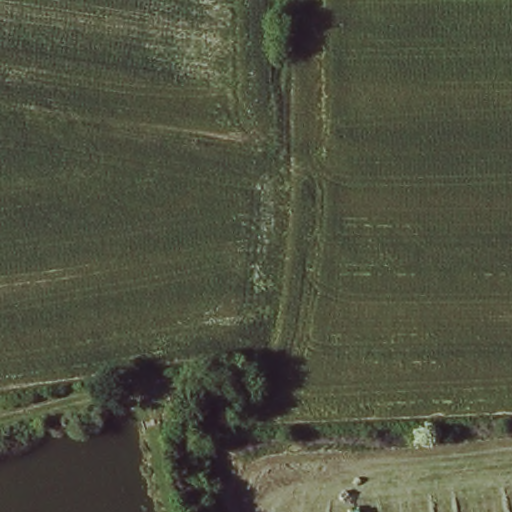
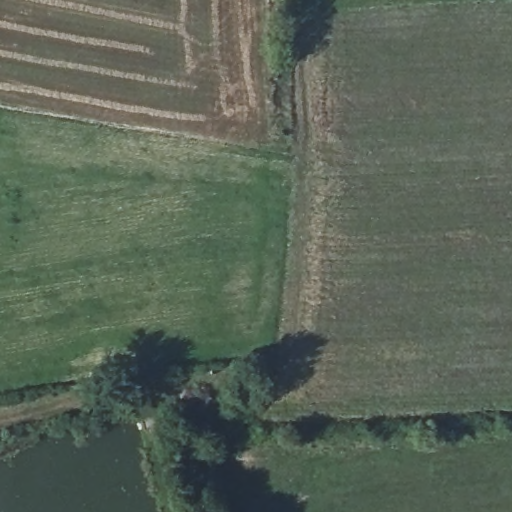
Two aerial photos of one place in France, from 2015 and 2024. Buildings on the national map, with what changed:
[]

